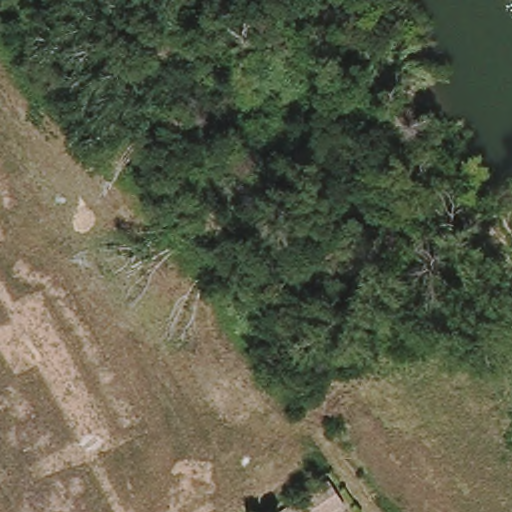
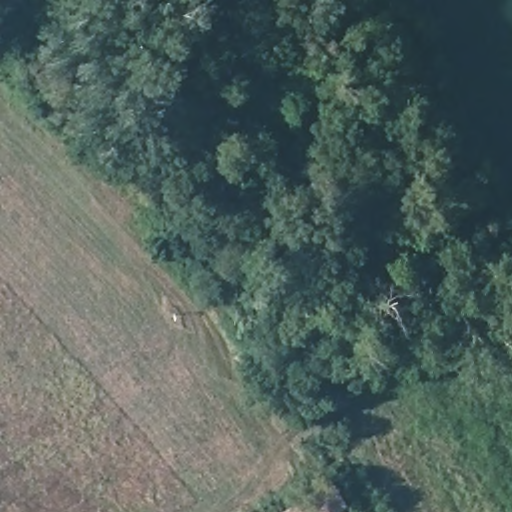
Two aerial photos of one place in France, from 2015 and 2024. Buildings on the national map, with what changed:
unchanged [(332,481),(345,504),(332,512),(280,512),(332,481)]

